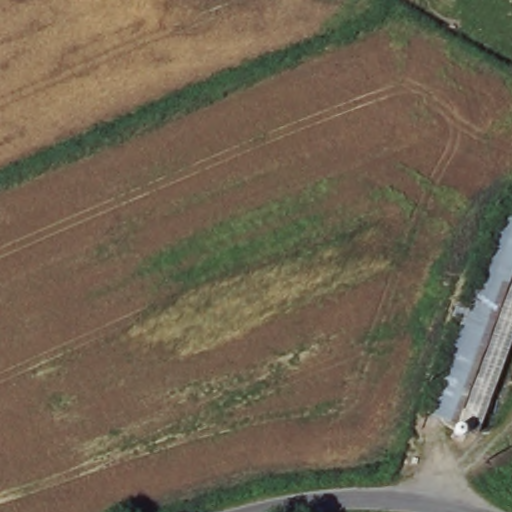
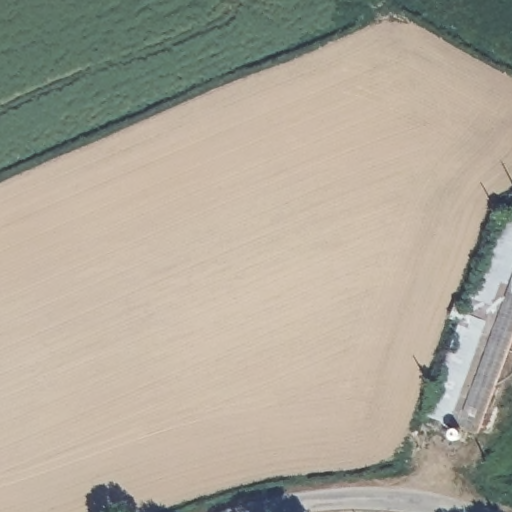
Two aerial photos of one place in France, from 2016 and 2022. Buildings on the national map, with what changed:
unchanged [(458,302),(467,305),(506,207),(512,210),(512,337),(475,430),(425,413),(462,320),(453,316),(458,302)]

